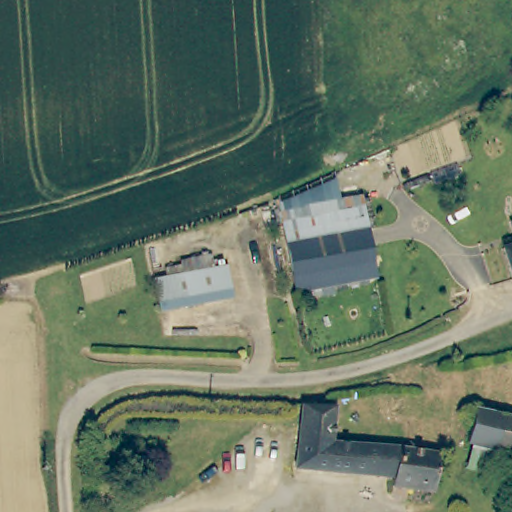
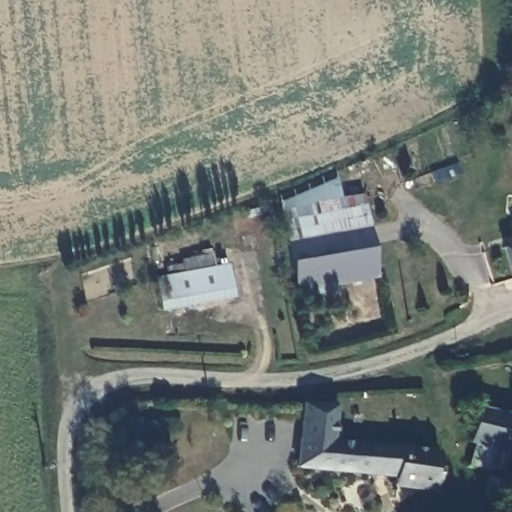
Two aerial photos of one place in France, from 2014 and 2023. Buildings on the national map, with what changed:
unchanged [(367,194),(382,270),(303,285),(289,209),(367,194)]
unchanged [(512,243),(512,262),(507,245),(512,243)]
unchanged [(230,262),(236,292),(168,306),(162,275),(230,262)]
unchanged [(301,403),(325,405),(333,405),(331,441),(438,448),(438,453),(451,455),(448,485),(397,482),(397,472),(303,465),(303,471),(296,470),(301,403)]
unchanged [(512,451),(471,444),(470,407),(512,414),(512,451)]

